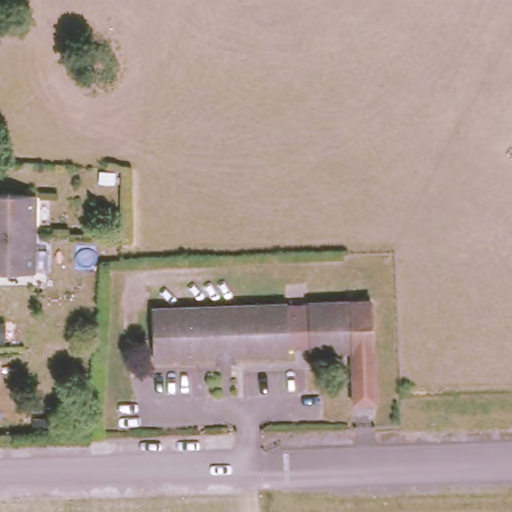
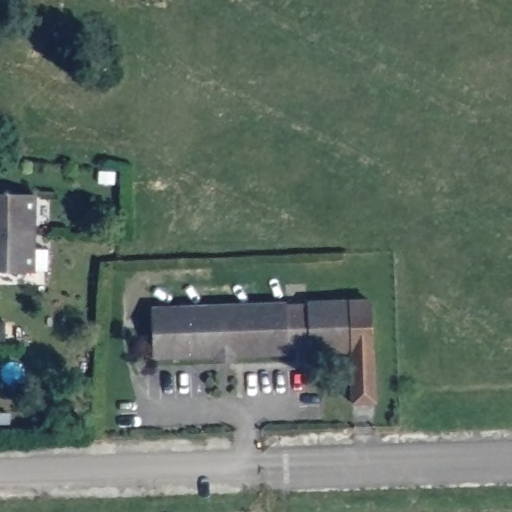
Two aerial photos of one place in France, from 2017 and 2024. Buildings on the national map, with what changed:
unchanged [(34,186),(33,225),(0,225),(0,186),(34,186)]
unchanged [(33,225),(33,267),(0,267),(0,225),(33,225)]
unchanged [(219,357),(219,349),(152,351),(150,304),(285,299),(286,307),(306,306),(306,298),(370,296),(372,345),(351,346),(351,344),(309,346),(309,338),(288,338),(289,346),(233,349),(233,356),(219,357)]

